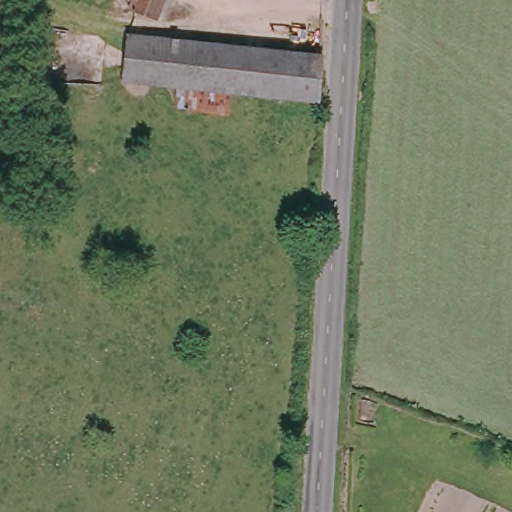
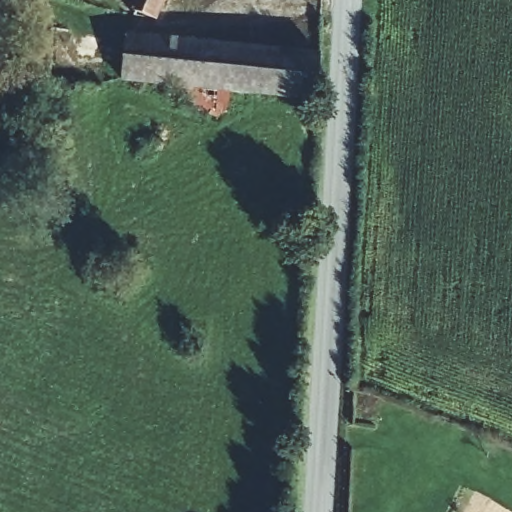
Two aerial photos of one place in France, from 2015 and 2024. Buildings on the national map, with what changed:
unchanged [(156,19),(132,9),(136,1),(133,0),(164,0),(156,19)]
unchanged [(317,62),(316,94),(277,89),(209,82),(134,73),(137,48),(137,43),(317,62)]

